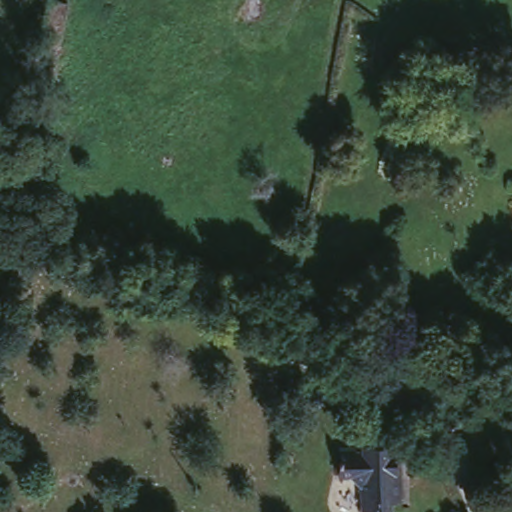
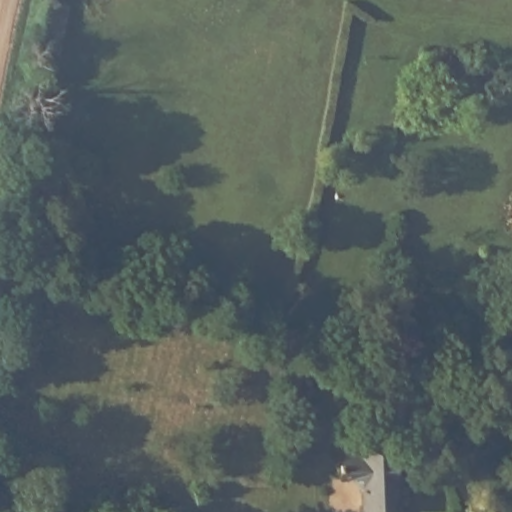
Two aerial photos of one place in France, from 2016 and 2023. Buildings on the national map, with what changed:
unchanged [(49,9),(72,15),(56,82),(34,77),(49,9)]
unchanged [(363,447),(365,437),(397,437),(395,457),(407,459),(403,493),(394,493),(392,506),(360,504),(361,489),(351,468),(341,468),(343,446),(363,447)]

